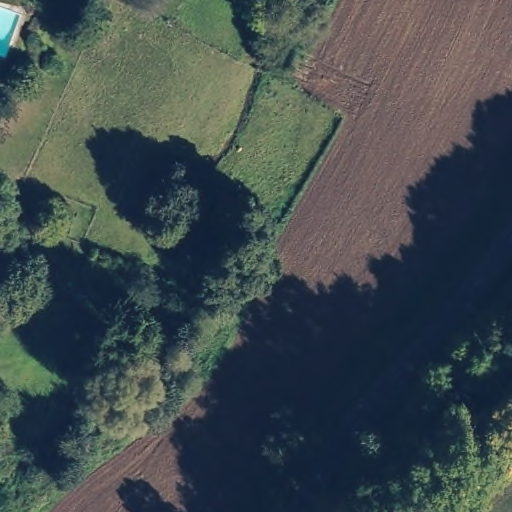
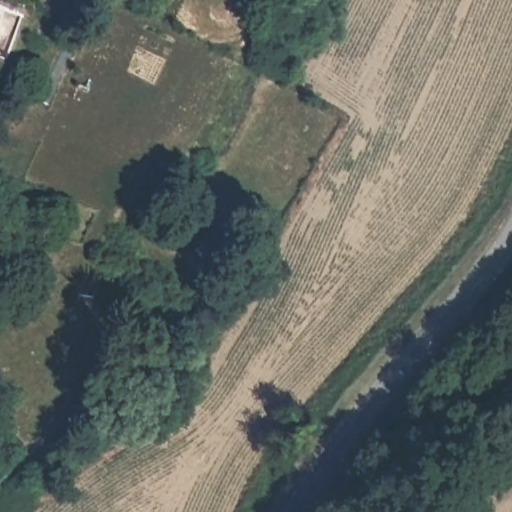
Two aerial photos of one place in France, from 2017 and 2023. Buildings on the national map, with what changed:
unchanged [(212,213),(218,203),(222,196),(234,203),(229,210),(240,217),(229,235),(217,228),(207,222),(212,213)]

